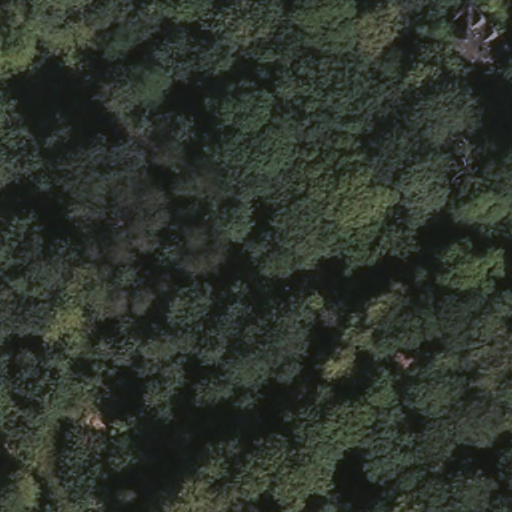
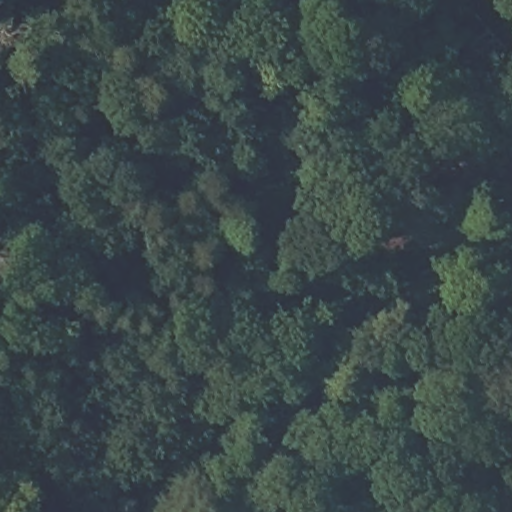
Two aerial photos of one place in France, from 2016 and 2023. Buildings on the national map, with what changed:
unchanged [(266,0),(251,19),(238,2),(241,0),(266,0)]
unchanged [(469,0),(470,0),(512,44),(512,61),(482,87),(430,33),(469,0)]
unchanged [(230,60),(211,76),(196,60),(210,43),(230,60)]
unchanged [(162,415),(179,433),(168,446),(149,427),(162,415)]

